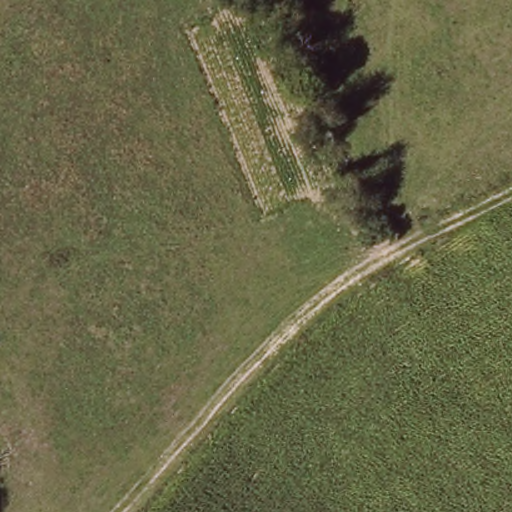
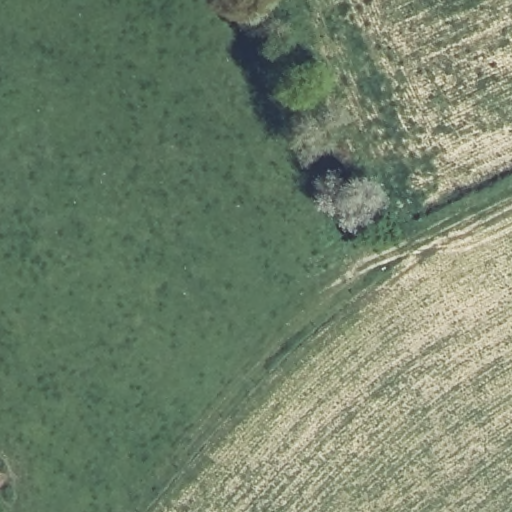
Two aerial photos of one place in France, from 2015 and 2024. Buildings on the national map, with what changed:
[]

